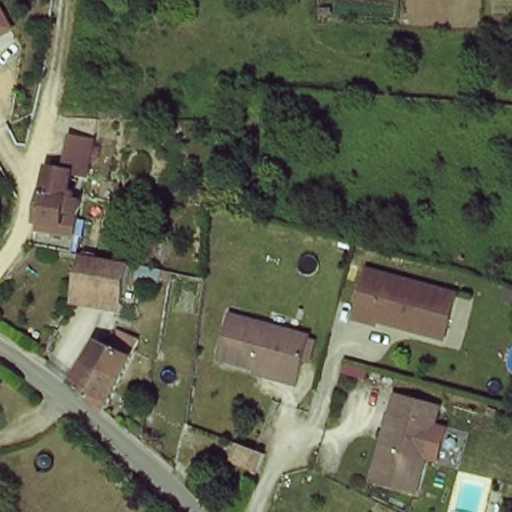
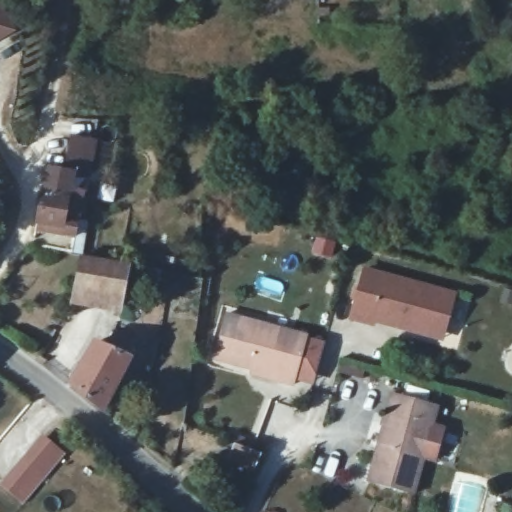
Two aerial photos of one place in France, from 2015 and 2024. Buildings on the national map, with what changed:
unchanged [(0,40),(0,2),(16,31),(0,40)]
unchanged [(38,224),(41,211),(44,197),(50,199),(59,175),(70,180),(84,145),(108,154),(95,190),(82,185),(77,200),(85,204),(80,206),(65,202),(61,228),(38,224)]
unchanged [(77,293),(83,261),(102,265),(130,272),(128,283),(123,303),(77,293)]
unchanged [(454,291),(445,328),(412,319),(408,332),(350,316),(362,268),(454,291)]
unchanged [(302,329),(292,373),(215,352),(228,310),(302,329)]
unchanged [(83,363),(93,345),(106,351),(116,338),(118,335),(142,350),(120,385),(83,363)]
unchanged [(107,415),(92,403),(82,395),(79,392),(70,386),(82,365),(83,363),(120,385),(107,415)]
unchanged [(440,404),(417,484),(369,470),(393,393),(440,404)]
new [(0,485),(0,483),(41,433),(63,452),(21,502),(0,485)]
unchanged [(219,461),(240,442),(257,461),(246,488),(219,461)]

